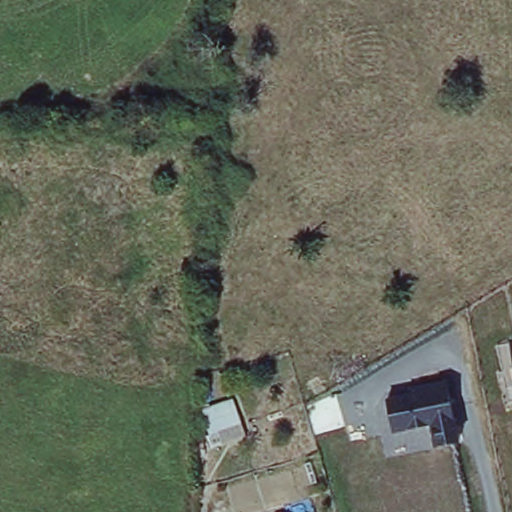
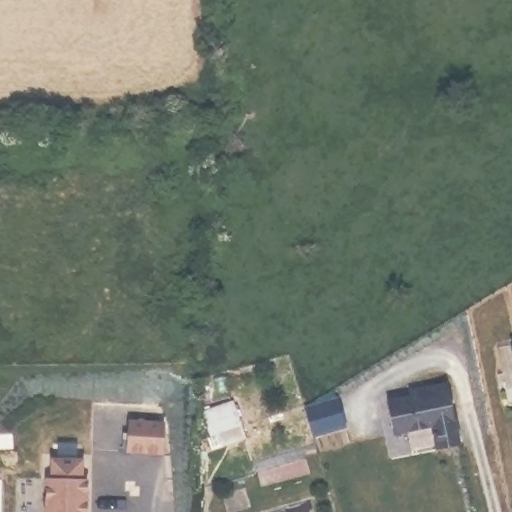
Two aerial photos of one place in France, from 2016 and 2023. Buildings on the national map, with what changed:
unchanged [(512,339),(512,356),(508,340),(512,339)]
unchanged [(436,448),(431,427),(393,435),(387,399),(449,386),(460,442),(436,448)]
unchanged [(200,408),(231,397),(246,437),(213,447),(200,408)]
new [(162,417),(162,450),(127,448),(128,417),(162,417)]
new [(83,512),(47,512),(47,457),(83,455),(83,512)]
unchanged [(297,512),(279,512),(296,507),(297,512)]

